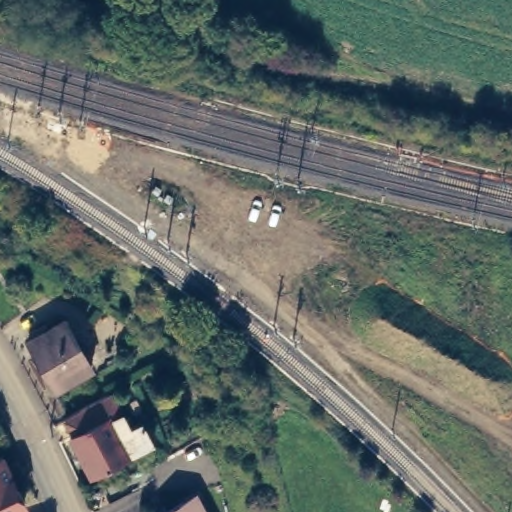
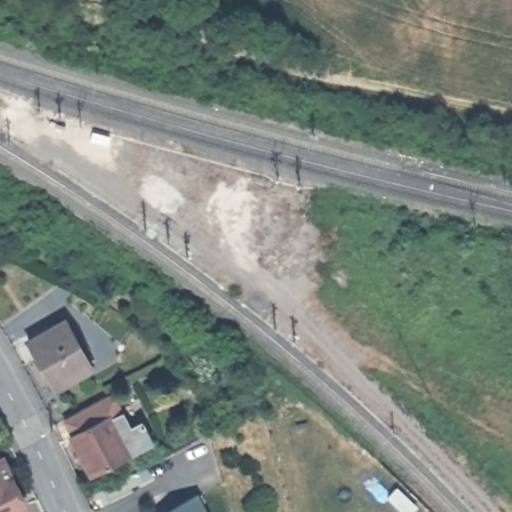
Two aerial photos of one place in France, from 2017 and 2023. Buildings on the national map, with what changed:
unchanged [(92,364),(55,385),(27,337),(64,316),(92,364)]
unchanged [(114,392),(131,425),(142,419),(154,442),(91,475),(70,436),(74,433),(66,417),(114,392)]
unchanged [(8,512),(0,512),(0,459),(5,457),(27,504),(8,512)]
unchanged [(161,512),(190,497),(198,512),(161,512)]

